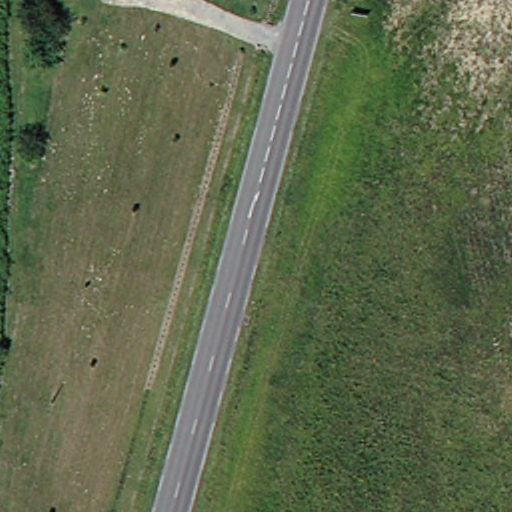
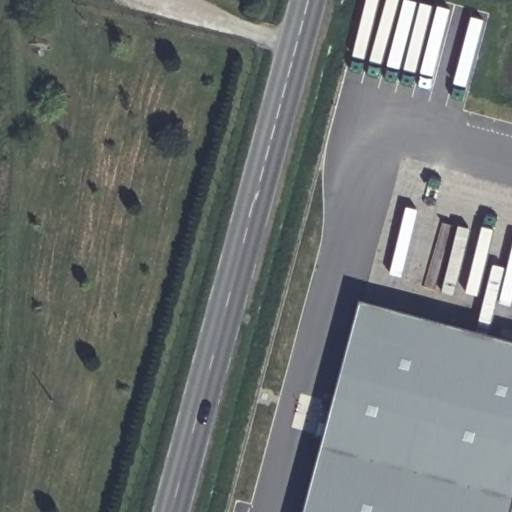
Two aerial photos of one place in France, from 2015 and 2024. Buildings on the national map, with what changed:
new [(512,342),(512,512),(306,512),(363,301),(512,342)]

